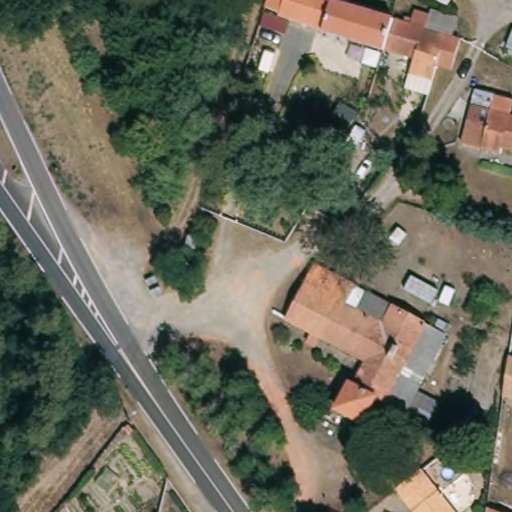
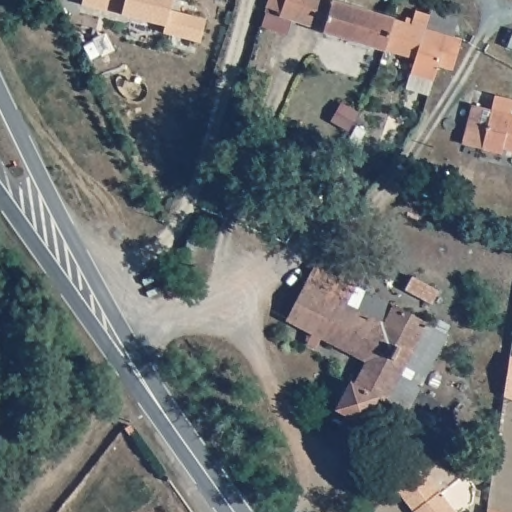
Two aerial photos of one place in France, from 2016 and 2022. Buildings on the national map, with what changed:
new [(171,0),(168,9),(204,18),(199,41),(164,33),(165,24),(121,14),(81,4),(82,0),(171,0)]
unchanged [(321,28),(315,26),(281,14),(281,11),(266,6),(269,0),(328,0),(326,4),(331,6),(333,0),(336,0),(394,20),(384,51),(320,30),(321,28)]
unchanged [(451,0),(448,6),(434,0),(451,0)]
unchanged [(405,15),(411,17),(414,10),(430,13),(431,8),(458,16),(453,35),(464,37),(463,38),(450,63),(445,62),(440,61),(433,84),(430,84),(411,78),(416,61),(384,51),(394,20),(402,22),(405,15)]
unchanged [(506,47),(512,33),(512,49),(506,47)]
unchanged [(510,146),(507,159),(461,147),(466,120),(475,80),(497,85),(495,96),(512,98),(512,147),(510,146)]
unchanged [(409,413),(383,402),(368,432),(341,418),(364,365),(289,328),(316,268),(354,288),(356,283),(371,289),(368,296),(449,335),(409,413)]
unchanged [(512,357),(512,402),(501,398),(507,356),(512,357)]
unchanged [(411,509),(394,488),(421,469),(437,488),(457,512),(414,512),(411,509)]

